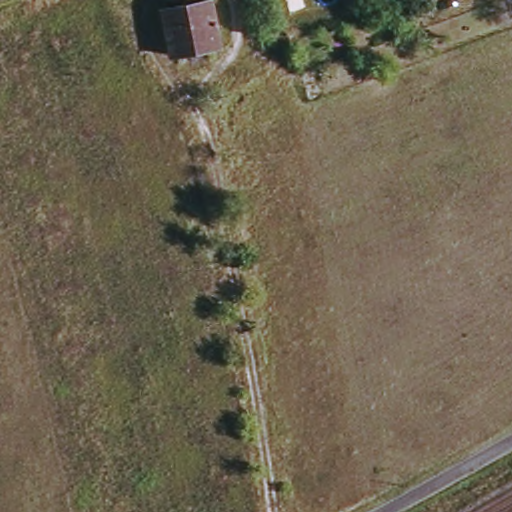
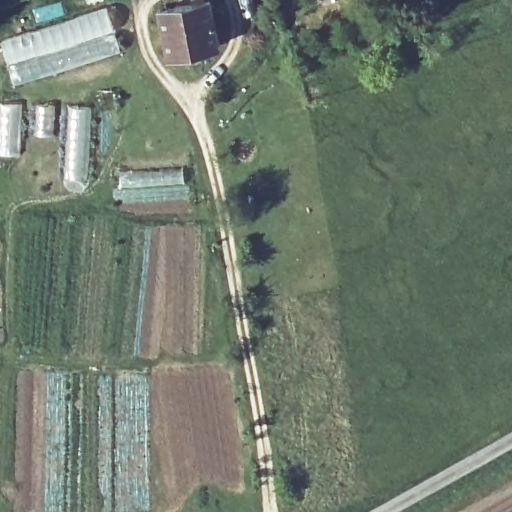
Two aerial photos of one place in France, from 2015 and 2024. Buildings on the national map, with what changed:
unchanged [(158,9),(206,0),(208,0),(216,43),(167,53),(158,9)]
new [(105,5),(121,52),(13,86),(0,46),(0,40),(105,5)]
new [(21,103),(19,156),(0,155),(0,102),(21,103)]

